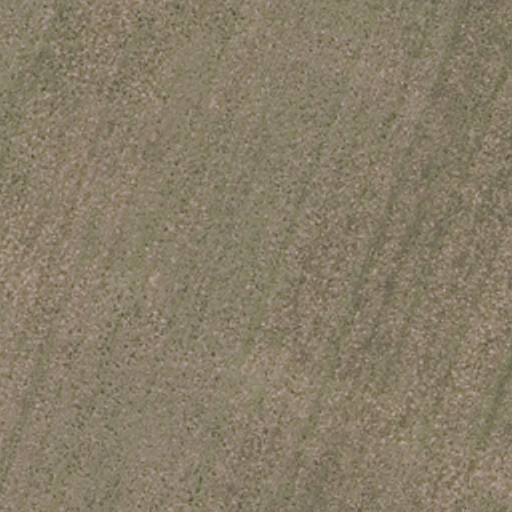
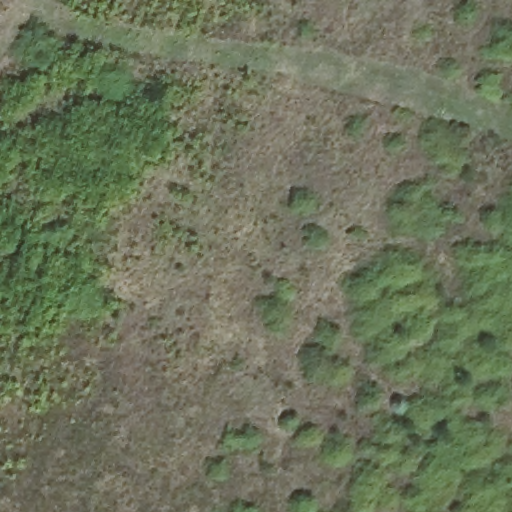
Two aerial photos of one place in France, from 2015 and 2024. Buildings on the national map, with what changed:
[]

